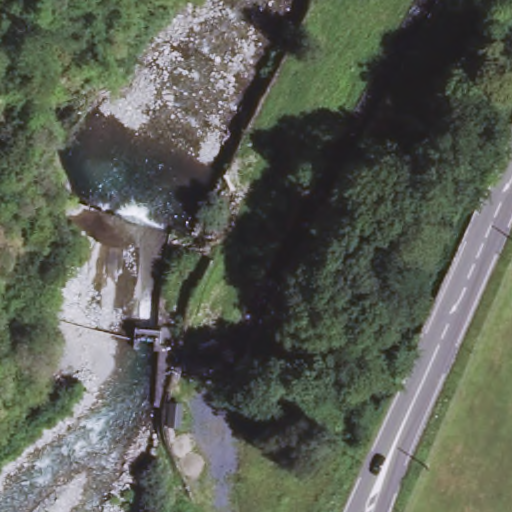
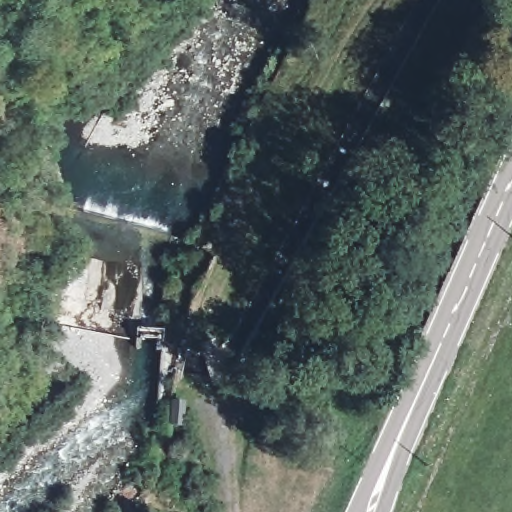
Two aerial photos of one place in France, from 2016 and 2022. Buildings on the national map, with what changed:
[]

